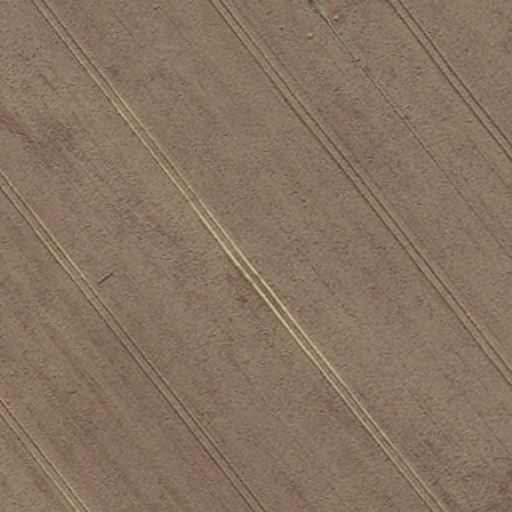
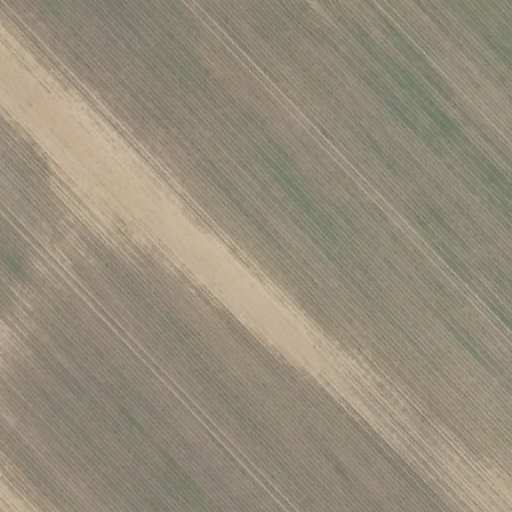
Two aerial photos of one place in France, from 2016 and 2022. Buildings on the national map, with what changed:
[]

